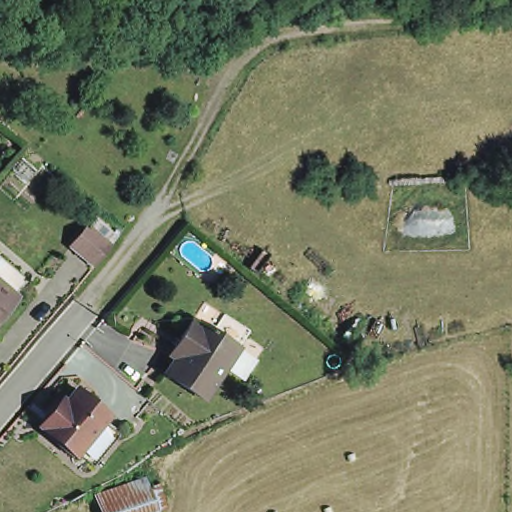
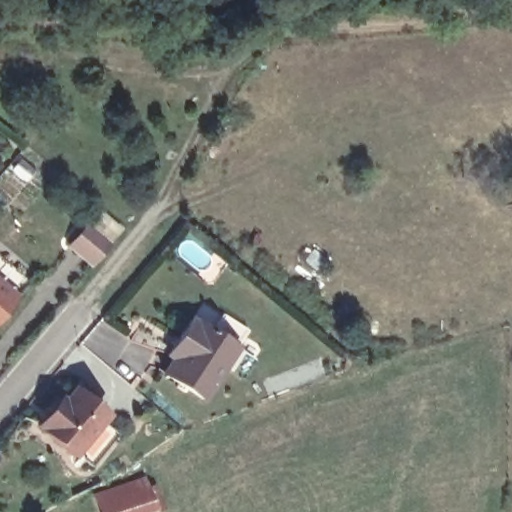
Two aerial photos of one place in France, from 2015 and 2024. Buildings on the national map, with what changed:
unchanged [(93,261),(78,248),(70,241),(87,220),(95,226),(111,239),(93,261)]
unchanged [(15,296),(0,313),(0,283),(15,296)]
unchanged [(200,319),(202,316),(235,337),(241,340),(229,359),(207,395),(168,370),(178,354),(172,350),(182,334),(194,315),(200,319)]
unchanged [(105,416),(70,455),(36,426),(49,411),(60,399),(64,402),(75,389),(105,416)]
unchanged [(94,493),(145,475),(148,485),(158,482),(165,502),(154,505),(134,512),(99,512),(94,493)]

